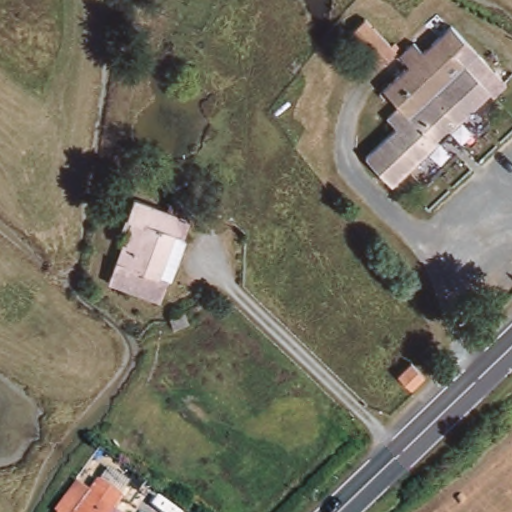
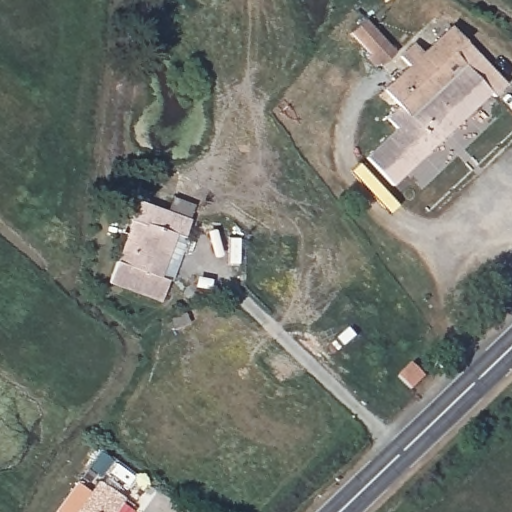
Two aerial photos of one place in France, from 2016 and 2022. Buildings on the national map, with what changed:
unchanged [(395,53),(380,66),(350,33),(365,19),(395,53)]
unchanged [(409,68),(399,57),(412,45),(421,56),(448,26),(506,84),(491,100),(485,96),(392,188),(368,161),(401,132),(390,119),(402,109),(385,90),(409,68)]
unchanged [(124,215),(129,199),(191,217),(164,303),(112,285),(134,218),(124,215)]
unchanged [(418,390),(405,376),(418,364),(432,376),(418,390)]
unchanged [(80,482),(92,492),(100,479),(112,488),(126,498),(115,512),(58,512),(56,511),(80,482)]

